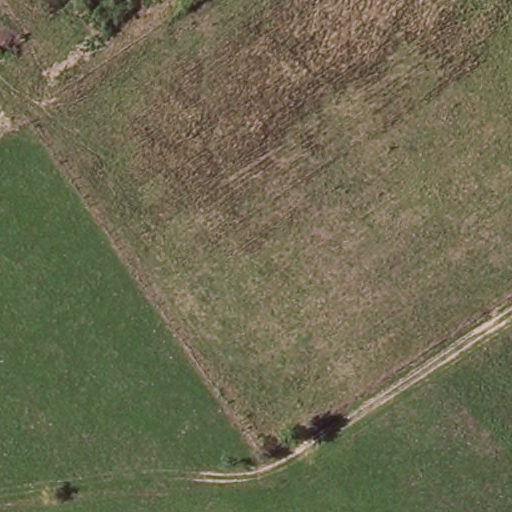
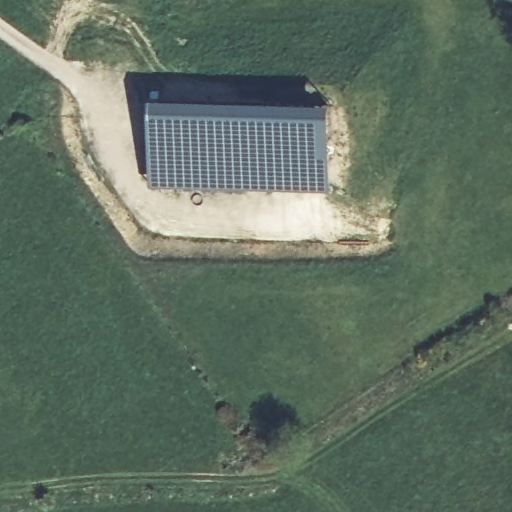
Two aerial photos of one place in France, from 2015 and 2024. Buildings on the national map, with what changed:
new [(333,190),(148,187),(153,96),(334,99),(333,190)]

